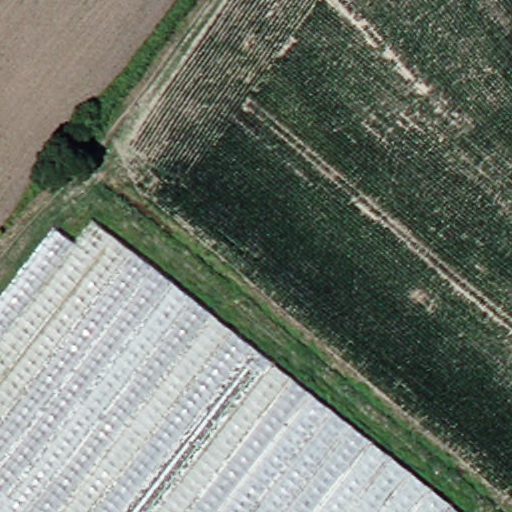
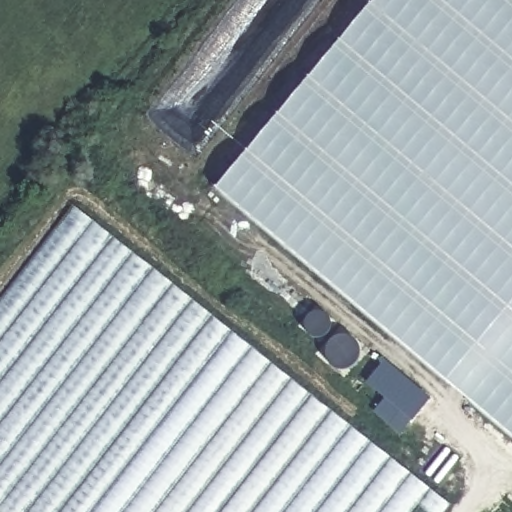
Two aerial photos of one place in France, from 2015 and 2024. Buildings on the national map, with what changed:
new [(211,193),(372,0),(512,0),(512,442),(211,193)]
unchanged [(46,227),(65,242),(83,219),(450,512),(0,512),(0,288),(46,227)]
new [(398,435),(373,412),(386,397),(368,381),(385,360),(430,397),(398,435)]

